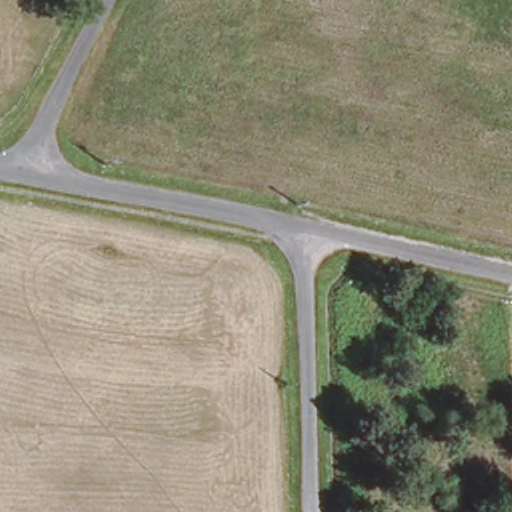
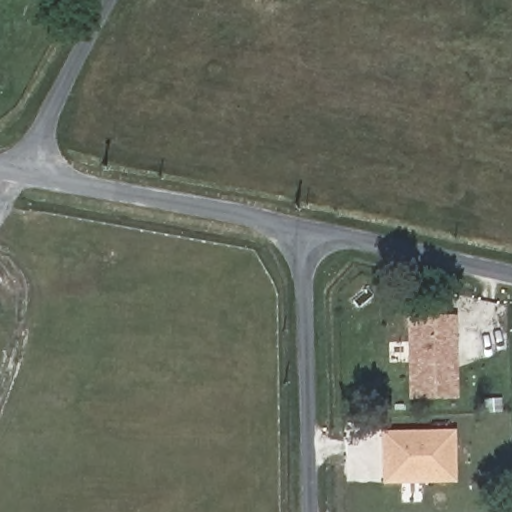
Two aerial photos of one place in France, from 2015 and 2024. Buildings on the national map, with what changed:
new [(406,316),(455,316),(458,399),(406,399),(406,316)]
new [(380,432),(454,430),(455,483),(382,486),(380,432)]

